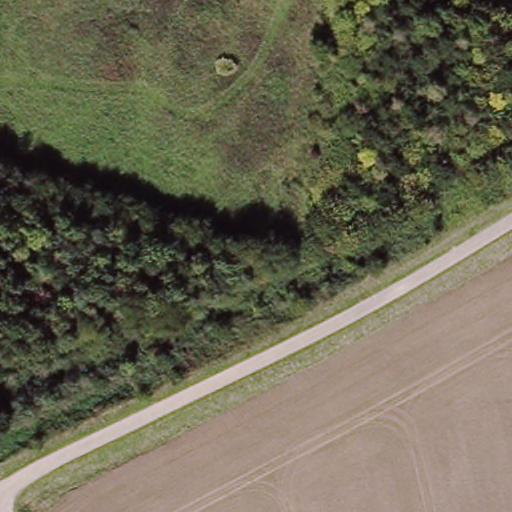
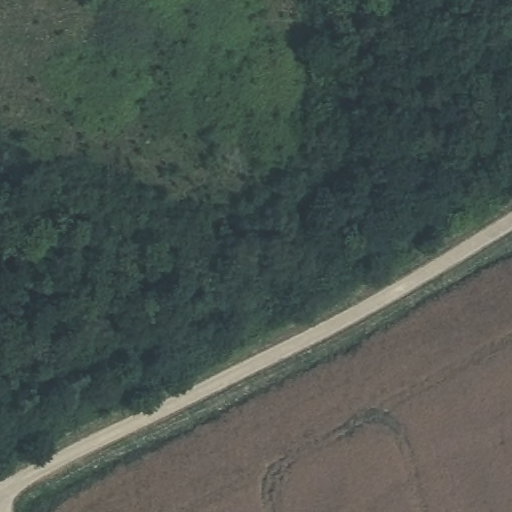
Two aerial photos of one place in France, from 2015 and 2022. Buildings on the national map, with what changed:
[]

